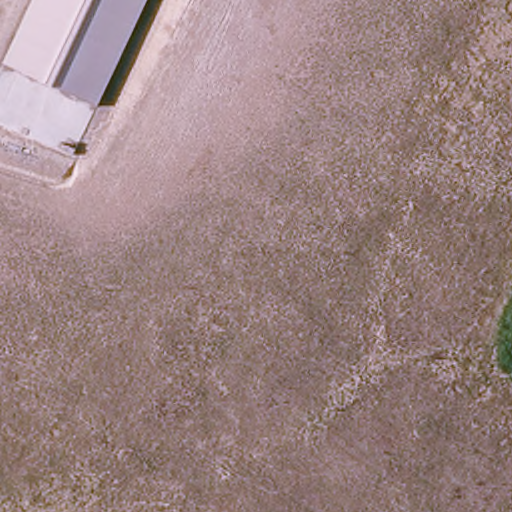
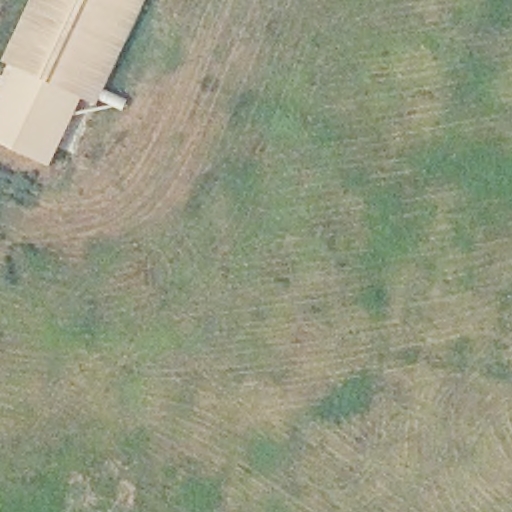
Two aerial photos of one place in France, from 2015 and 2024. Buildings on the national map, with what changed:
unchanged [(98,103),(2,62),(32,0),(146,0),(98,103)]
new [(16,68),(84,97),(51,169),(0,144),(0,103),(16,68)]

